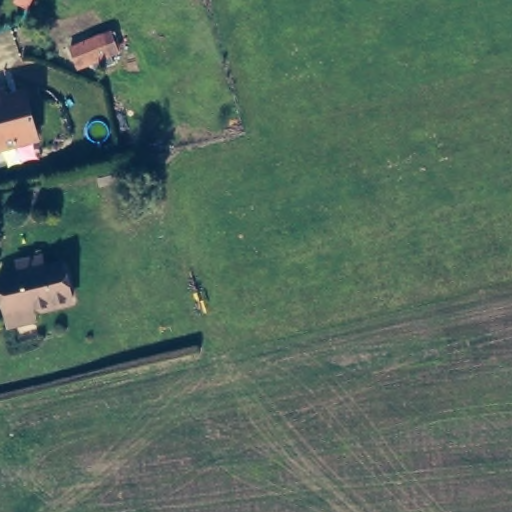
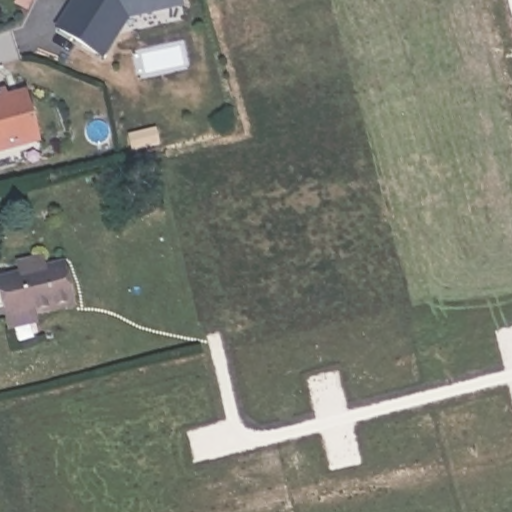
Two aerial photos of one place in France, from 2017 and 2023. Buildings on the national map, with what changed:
new [(55,27),(72,0),(182,0),(183,6),(128,19),(102,58),(55,27)]
unchanged [(3,93),(7,106),(26,102),(37,144),(0,155),(0,94),(3,93)]
unchanged [(68,300),(31,311),(31,319),(6,324),(0,294),(0,277),(17,273),(15,260),(37,255),(40,267),(60,261),(68,300)]

